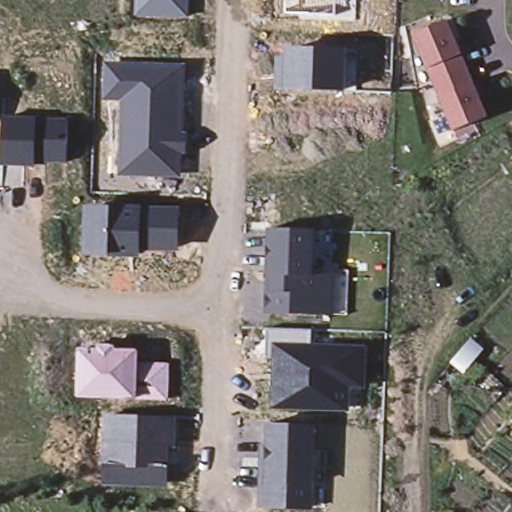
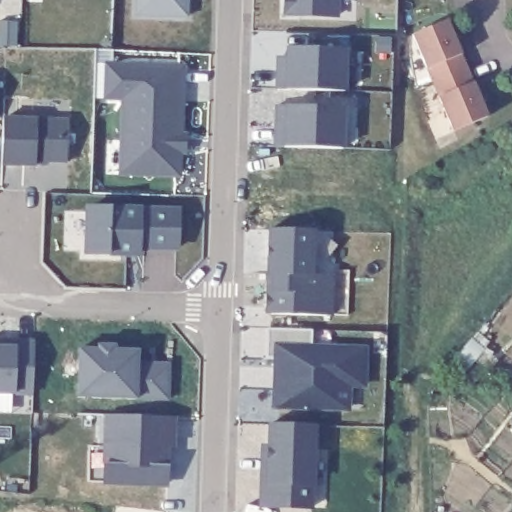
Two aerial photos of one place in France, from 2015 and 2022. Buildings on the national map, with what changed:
unchanged [(136,0),(190,0),(189,18),(135,14),(136,0)]
unchanged [(336,0),(335,15),(286,13),(286,0),(336,0)]
unchanged [(451,131),(411,35),(445,20),(486,116),(451,131)]
unchanged [(276,58),(285,56),(286,46),(345,49),(345,92),(285,90),(275,90),(276,58)]
unchanged [(121,100),(103,98),(105,62),(185,65),(185,133),(188,133),(186,156),(182,156),(181,177),(117,175),(121,100)]
new [(344,150),(272,146),(274,105),(345,108),(344,150)]
unchanged [(3,115),(37,117),(69,119),(67,163),(49,162),(48,166),(35,164),(35,167),(2,165),(3,115)]
unchanged [(86,206),(110,206),(111,206),(111,204),(143,206),(181,207),(180,252),(140,250),(140,257),(108,255),(84,255),(86,206)]
unchanged [(267,274),(269,229),(316,231),(315,275),(331,275),(330,316),(266,313),(267,274)]
unchanged [(273,359),(266,359),(268,330),(312,330),(312,343),(368,346),(367,391),(351,390),(350,412),(271,407),(273,359)]
unchanged [(482,350),(459,377),(444,362),(467,337),(482,350)]
new [(15,395),(0,395),(0,339),(35,340),(32,395),(15,395)]
unchanged [(79,348),(98,348),(100,345),(115,345),(116,349),(139,350),(139,361),(170,364),(168,400),(136,398),(79,397),(79,348)]
unchanged [(105,415),(176,418),(176,448),(169,447),(168,466),(168,487),(103,484),(105,415)]
unchanged [(261,445),(266,444),(267,423),(316,425),(313,487),(311,510),(258,506),(261,445)]

